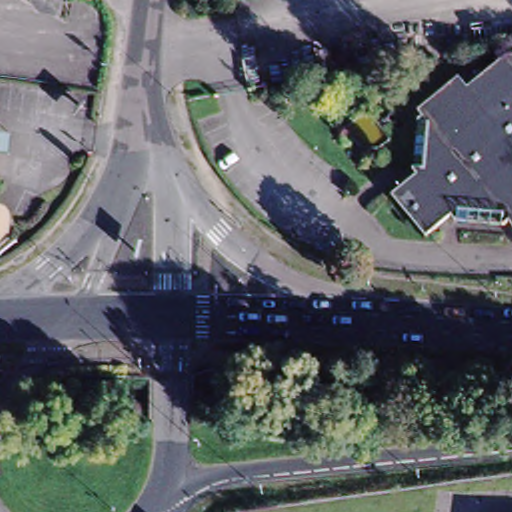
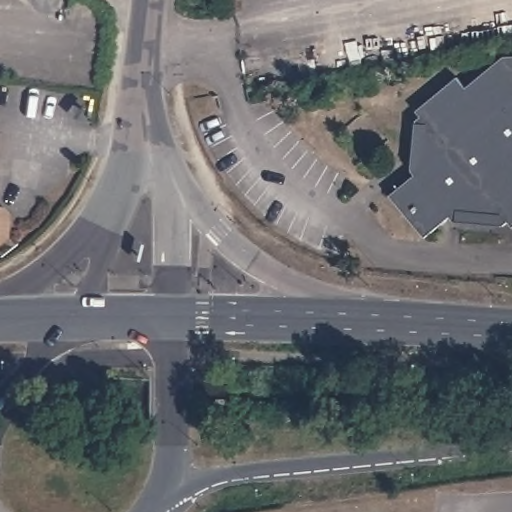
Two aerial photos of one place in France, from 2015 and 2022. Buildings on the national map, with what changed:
unchanged [(410,181),(406,177),(412,124),(417,120),(412,115),(453,81),(462,92),(502,61),(512,61),(512,231),(508,234),(505,227),(500,231),(448,227),(445,223),(420,244),(385,202),(410,181)]
unchanged [(0,250),(0,226),(9,227),(7,245),(0,250)]

